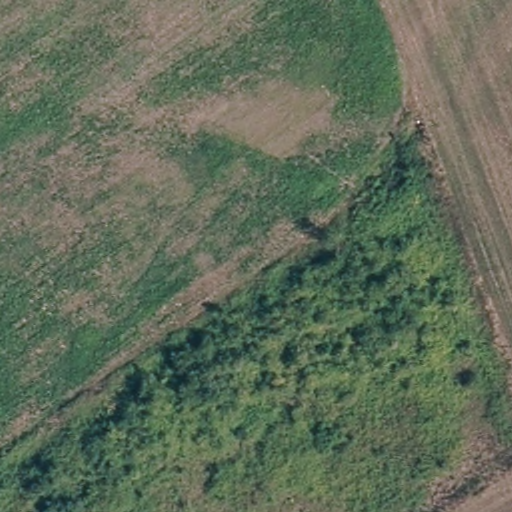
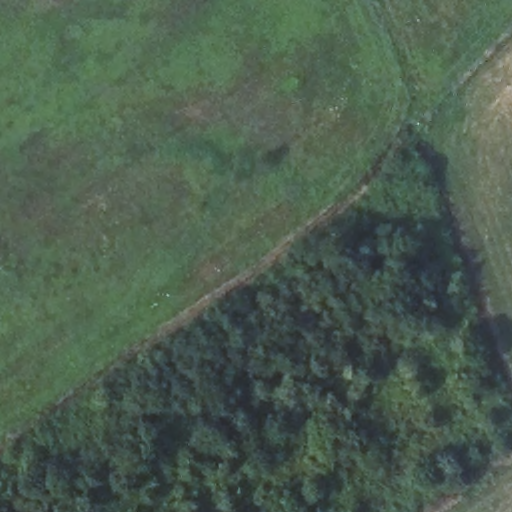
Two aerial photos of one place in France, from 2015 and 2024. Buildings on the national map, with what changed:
[]

